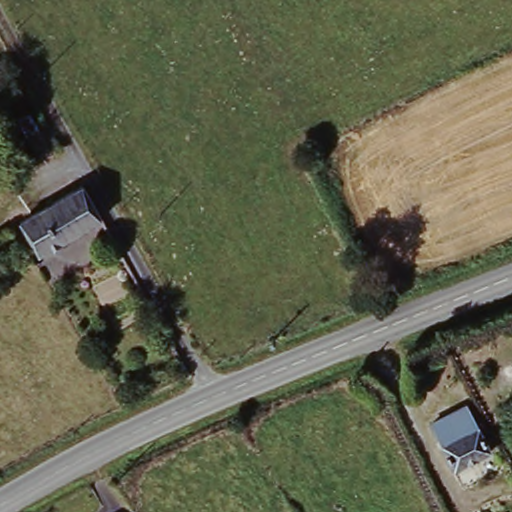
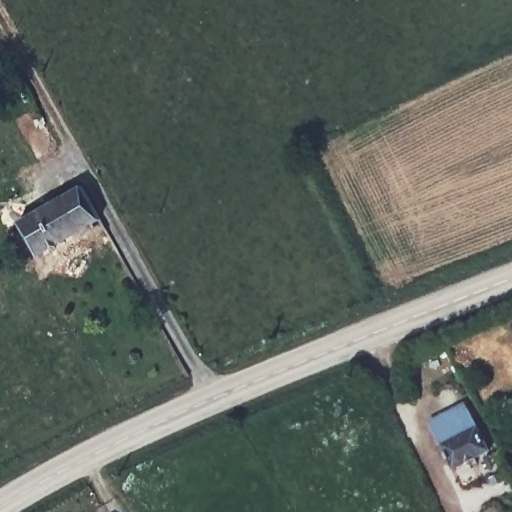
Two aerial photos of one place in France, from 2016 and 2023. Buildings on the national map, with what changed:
unchanged [(85,183),(102,213),(33,250),(17,220),(85,183)]
unchanged [(463,409),(477,432),(490,455),(458,472),(432,424),(463,409)]
unchanged [(112,510),(113,512),(108,512),(112,510)]

